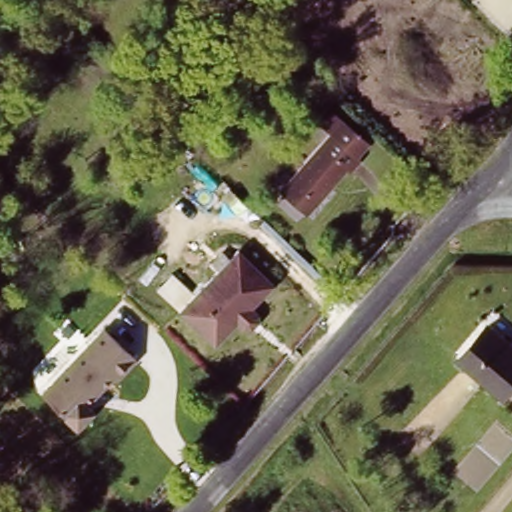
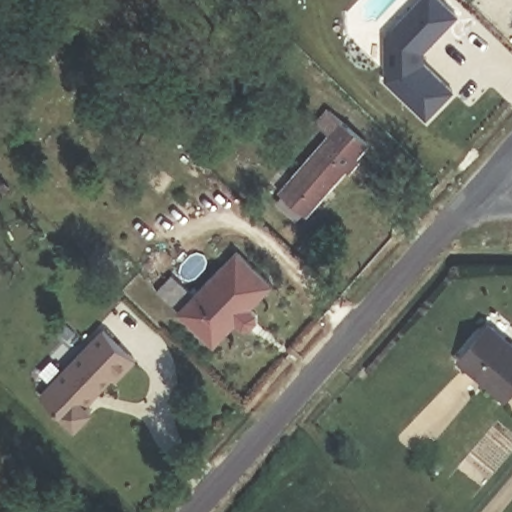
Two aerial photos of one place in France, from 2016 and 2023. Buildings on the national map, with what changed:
new [(426,52),(427,65),(456,92),(427,121),(386,80),(386,37),(420,0),(443,0),(460,16),(426,52)]
unchanged [(328,134),(315,124),(330,107),(326,104),(335,94),(370,129),(362,137),(367,144),(355,154),(359,157),(346,172),(343,169),(303,213),(278,190),(328,134)]
unchanged [(242,245),(277,280),(257,302),(262,308),(264,314),(257,322),(251,323),(243,316),(222,340),(185,305),(242,245)]
unchanged [(487,326),(512,347),(512,387),(505,396),(460,358),(487,326)]
unchanged [(102,327),(136,357),(89,404),(96,410),(80,428),(39,391),(102,327)]

